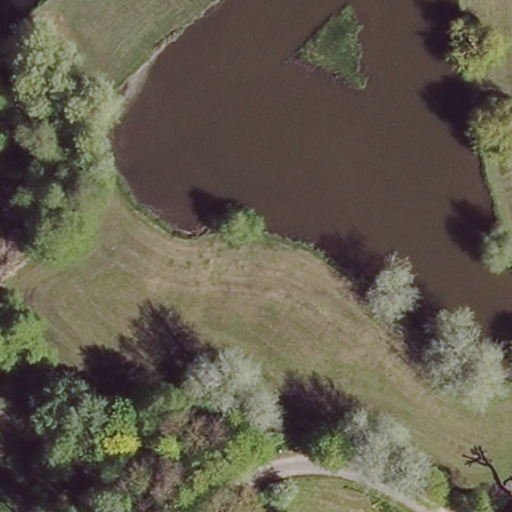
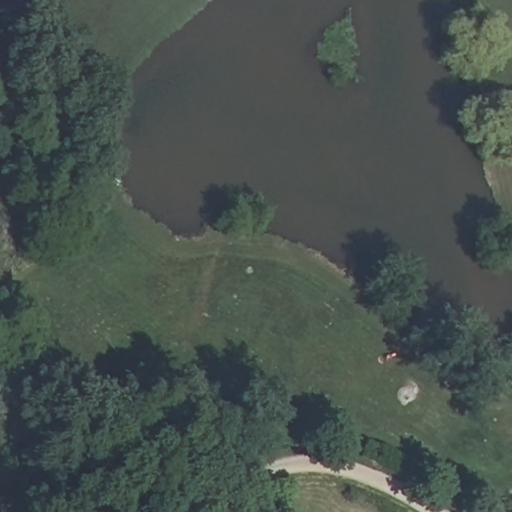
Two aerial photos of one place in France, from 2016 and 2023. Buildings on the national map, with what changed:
unchanged [(102,397),(122,431),(98,446),(80,413),(102,397)]

